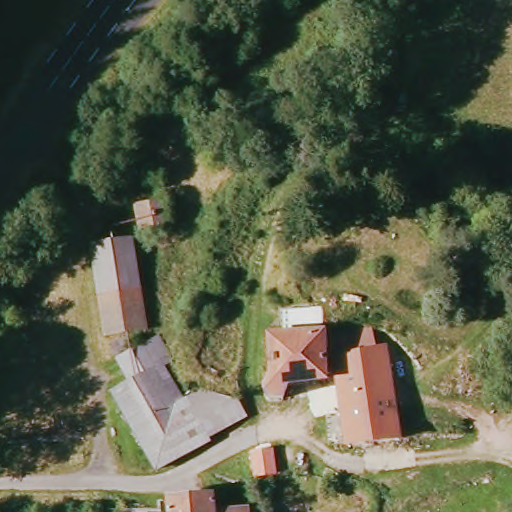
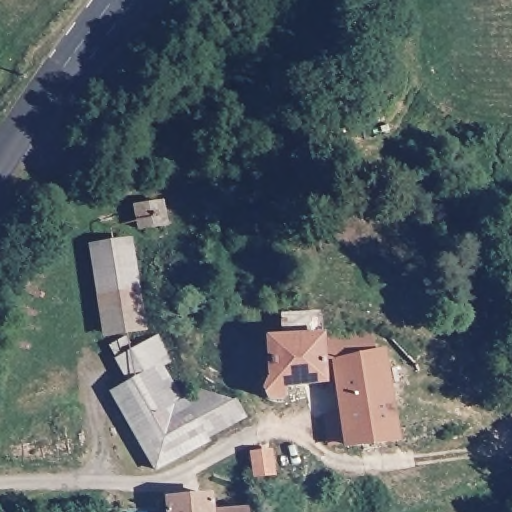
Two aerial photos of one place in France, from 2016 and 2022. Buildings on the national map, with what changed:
unchanged [(146,329),(126,332),(129,346),(156,332),(173,359),(161,365),(181,398),(199,386),(235,400),(244,417),(153,471),(104,393),(122,381),(109,360),(97,340),(84,242),(130,236),(146,329)]
unchanged [(274,423),(267,417),(264,412),(262,405),(263,399),(264,395),(271,388),(268,353),(280,351),(277,329),(316,324),(318,345),(322,344),(328,409),(296,413),(274,423)]
unchanged [(341,409),(335,368),(381,362),(387,406),(341,409)]
unchanged [(344,446),(332,446),(328,409),(341,409),(387,406),(393,444),(344,446)]
unchanged [(211,487),(212,509),(240,506),(240,512),(165,512),(164,489),(211,487)]

